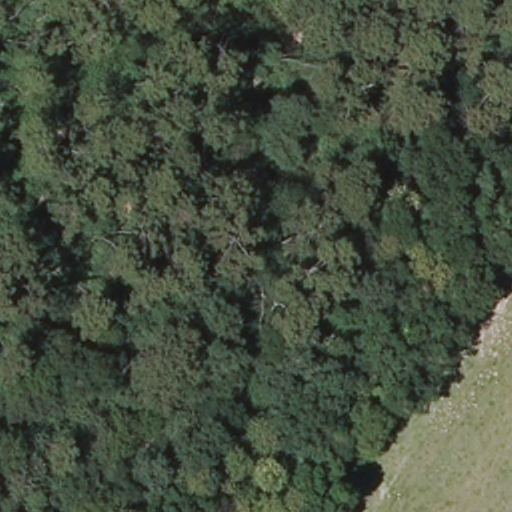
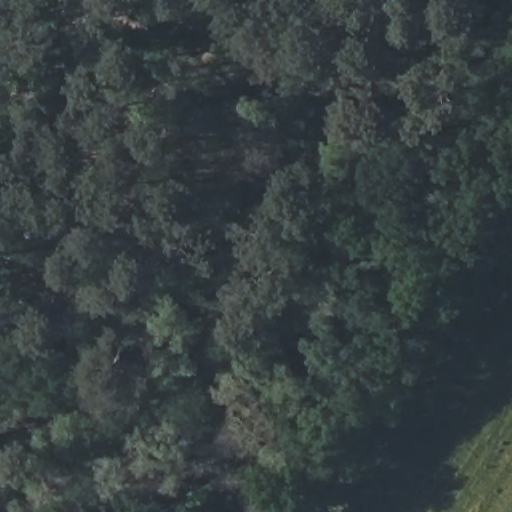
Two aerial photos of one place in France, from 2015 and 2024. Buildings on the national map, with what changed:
[]

